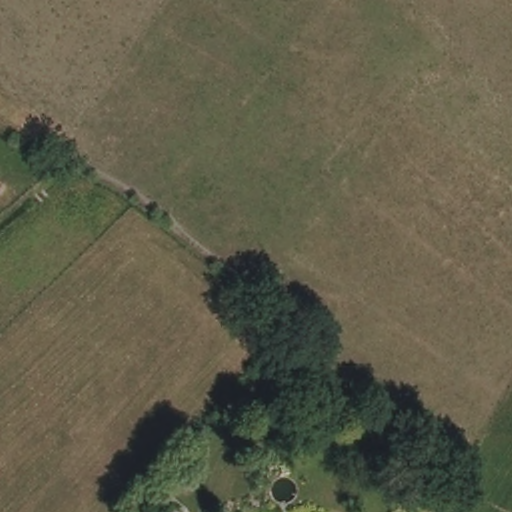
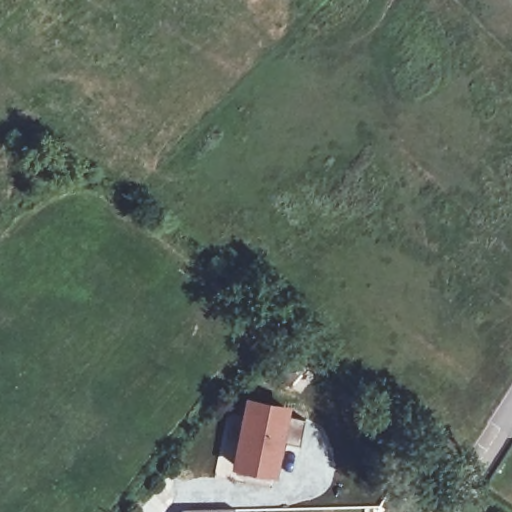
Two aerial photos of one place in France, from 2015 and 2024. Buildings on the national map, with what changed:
new [(244,394),(293,404),(291,415),(304,418),(299,445),(286,443),(277,476),(231,468),(244,394)]
unchanged [(188,496),(174,512),(140,512),(136,508),(166,475),(188,496)]
new [(183,508),(229,508),(229,510),(231,512),(180,512),(183,508)]

